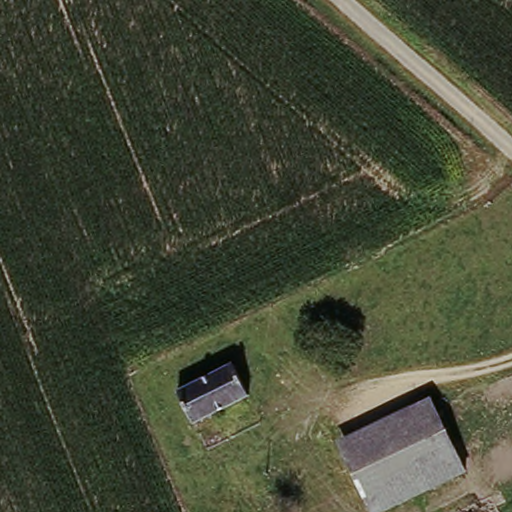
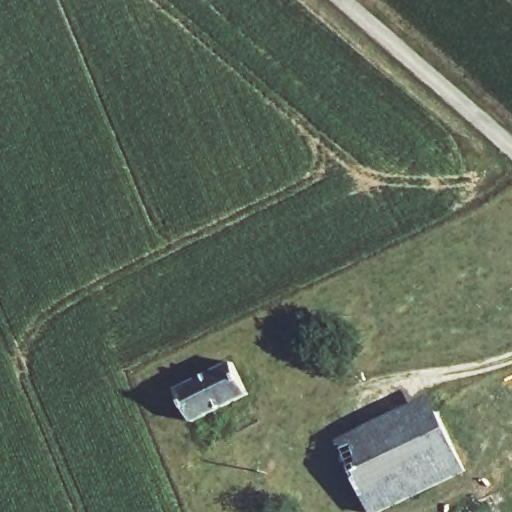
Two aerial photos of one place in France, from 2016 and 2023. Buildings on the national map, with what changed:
unchanged [(239,369),(256,398),(203,427),(186,396),(239,369)]
unchanged [(340,444),(434,400),(441,418),(349,463),(340,444)]
unchanged [(441,418),(468,476),(393,512),(373,512),(349,463),(441,418)]

